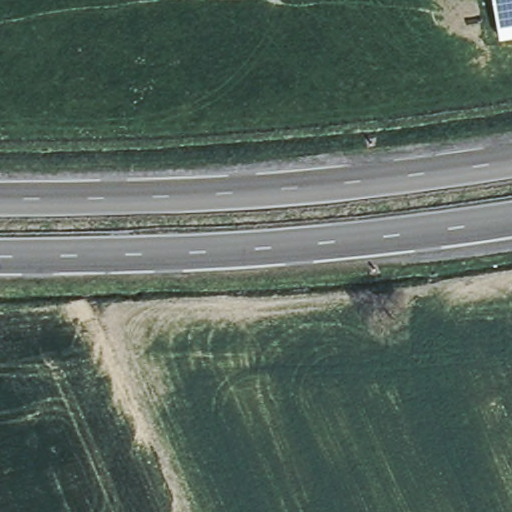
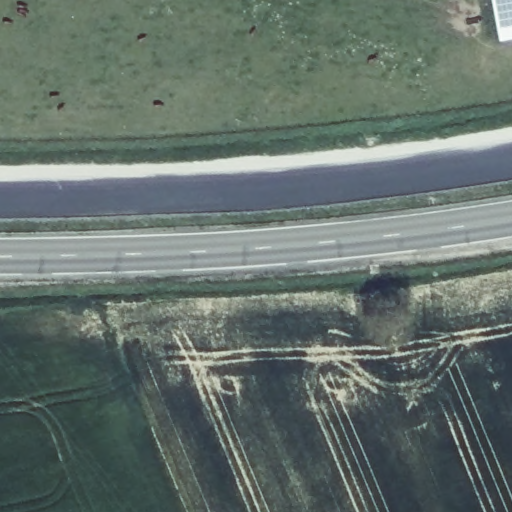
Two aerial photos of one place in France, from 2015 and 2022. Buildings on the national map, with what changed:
unchanged [(512,33),(498,36),(492,0),(512,0),(512,33)]

